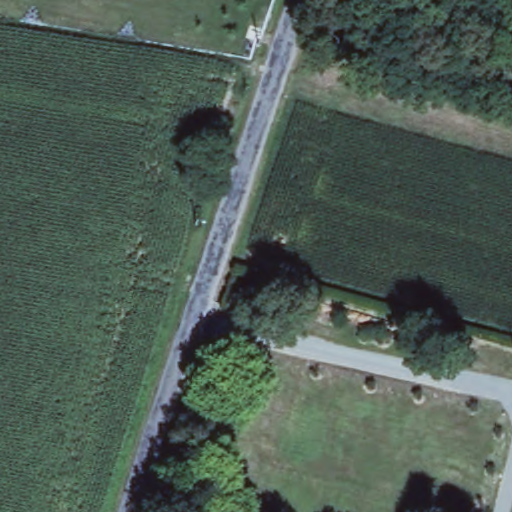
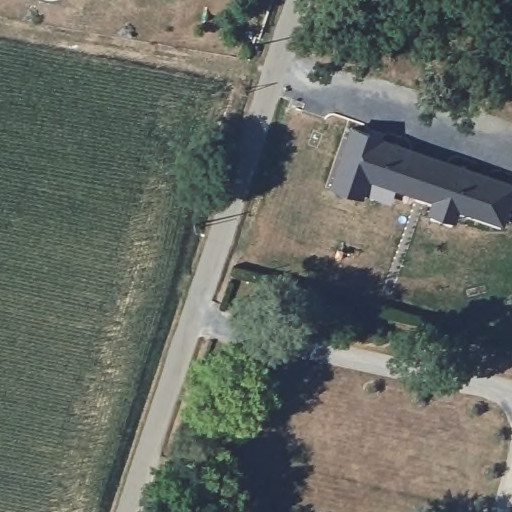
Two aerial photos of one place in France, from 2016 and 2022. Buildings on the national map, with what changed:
new [(369,180),(362,198),(329,187),(350,126),(512,183),(512,202),(504,225),(459,210),(454,222),(428,213),(431,202),(369,180)]

